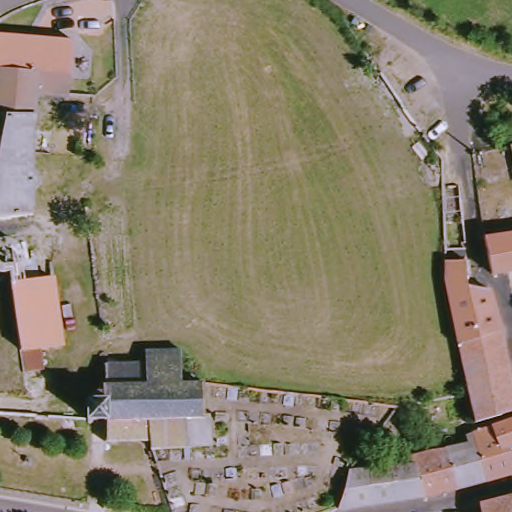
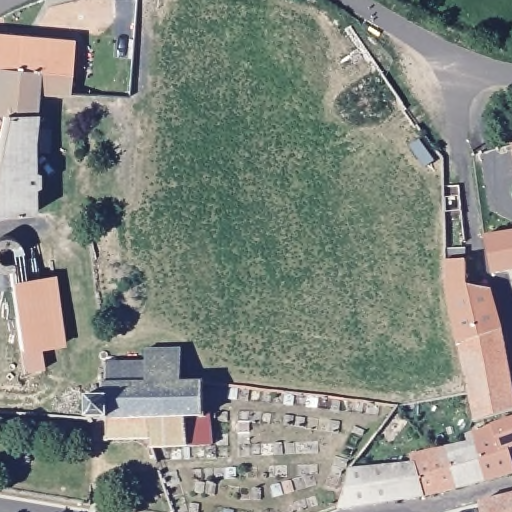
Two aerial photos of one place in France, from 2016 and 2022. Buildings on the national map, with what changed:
unchanged [(77,99),(44,100),(39,156),(39,179),(44,181),(44,192),(39,196),(39,220),(0,223),(0,162),(10,121),(0,120),(0,86),(1,77),(0,76),(0,38),(77,44),(77,99)]
unchanged [(512,240),(512,276),(497,279),(490,244),(512,240)]
unchanged [(475,265),(476,291),(497,295),(501,296),(512,336),(462,350),(450,288),(450,268),(475,265)]
unchanged [(61,280),(67,346),(25,350),(20,281),(61,280)]
unchanged [(512,336),(512,420),(478,430),(472,402),(462,350),(512,336)]
unchanged [(90,395),(95,394),(97,390),(102,388),(108,387),(110,359),(150,360),(150,347),(185,348),(184,380),(207,380),(210,410),(215,410),(215,442),(155,443),(155,435),(112,435),(112,416),(92,416),(90,395)]
unchanged [(480,439),(512,428),(512,482),(495,487),(480,439)]
unchanged [(448,454),(471,449),(470,443),(480,439),(495,487),(464,495),(448,454)]
unchanged [(417,468),(414,461),(435,457),(448,454),(464,495),(435,502),(417,468)]
unchanged [(417,468),(435,502),(368,512),(348,512),(354,475),(417,468)]
unchanged [(512,497),(512,512),(485,512),(484,505),(512,497)]

